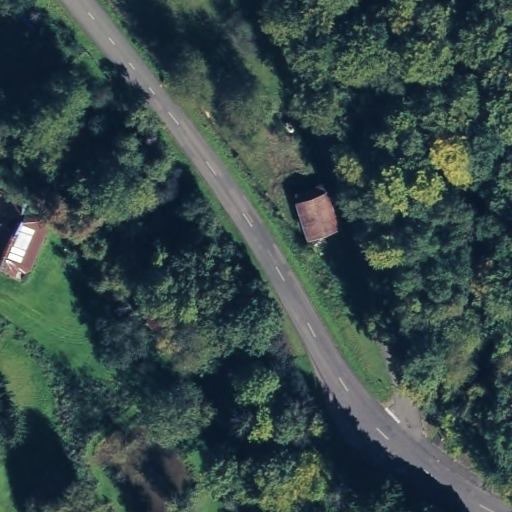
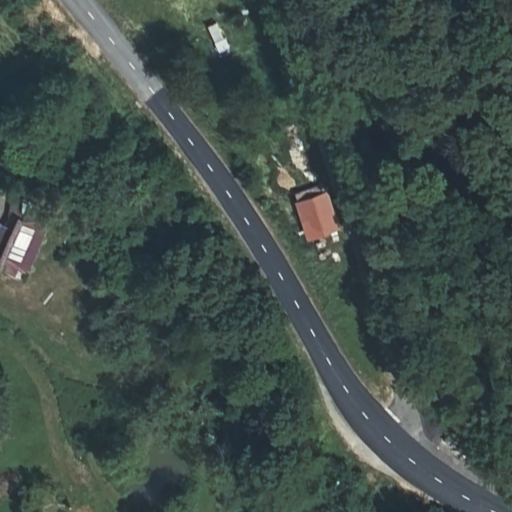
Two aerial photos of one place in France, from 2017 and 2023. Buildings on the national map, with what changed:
unchanged [(325,178),(340,231),(302,237),(292,187),(325,178)]
unchanged [(27,222),(50,224),(28,272),(7,262),(27,222)]
unchanged [(448,417),(482,446),(467,468),(433,440),(448,417)]

